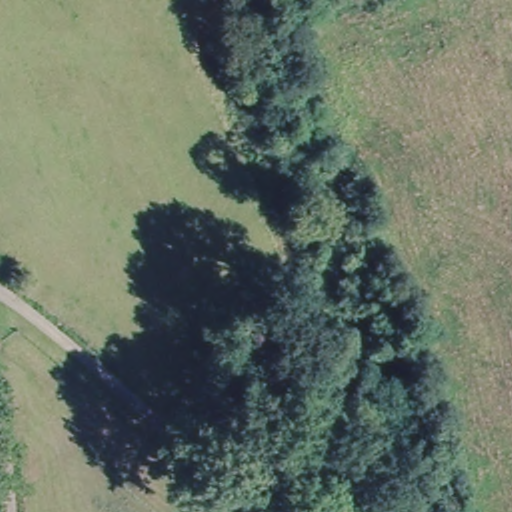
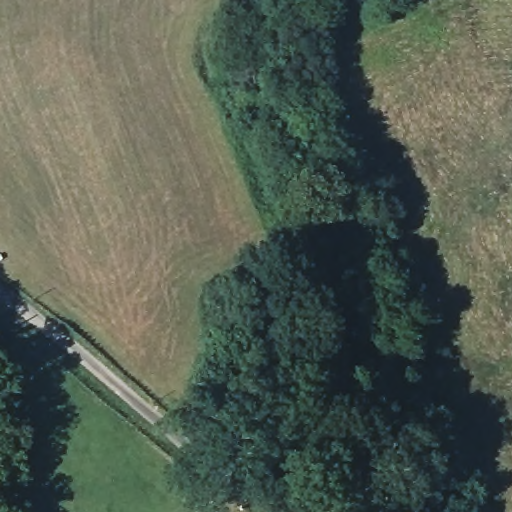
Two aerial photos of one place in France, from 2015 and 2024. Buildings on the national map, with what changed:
unchanged [(258,135),(263,124),(276,130),(271,141),(258,135)]

